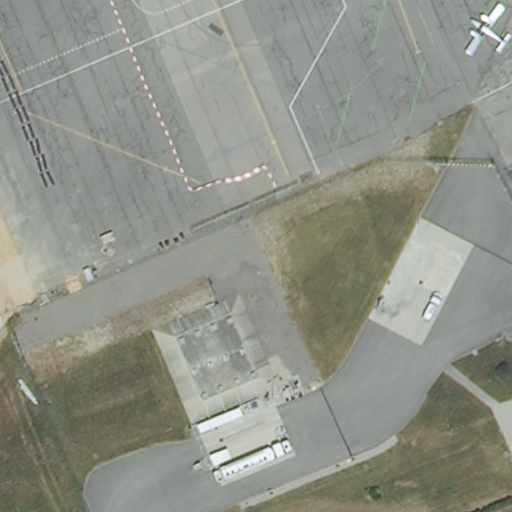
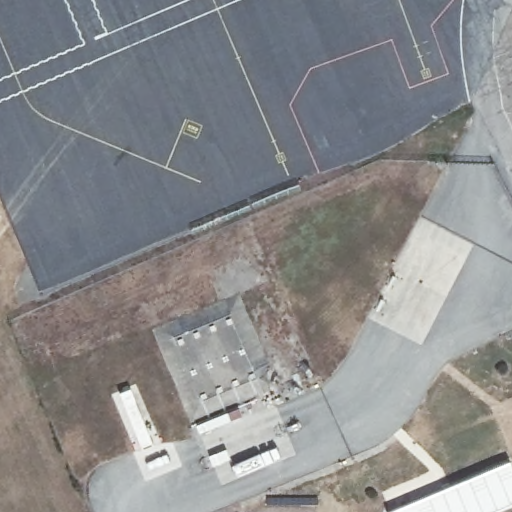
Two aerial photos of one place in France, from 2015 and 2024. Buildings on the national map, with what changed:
new [(512,467),(512,504),(493,512),(386,512),(386,511),(509,460),(512,467)]

